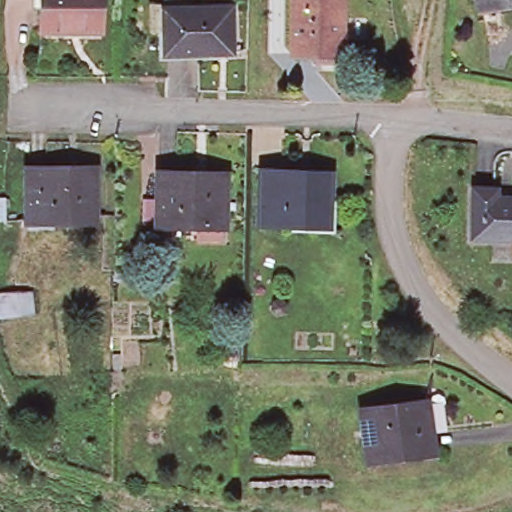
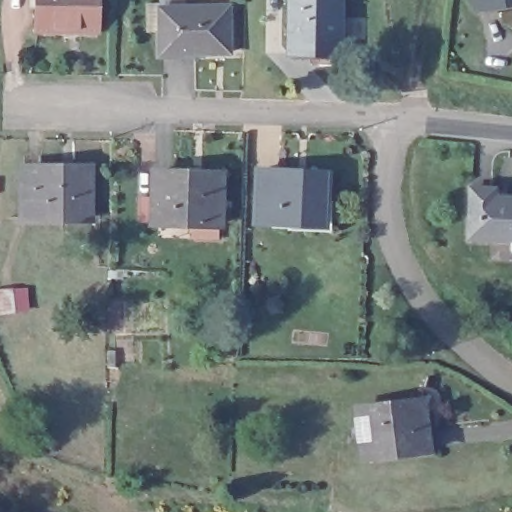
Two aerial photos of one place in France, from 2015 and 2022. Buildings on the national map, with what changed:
unchanged [(31,31),(30,0),(94,0),(94,30),(31,31)]
unchanged [(288,51),(291,0),(339,0),(336,53),(288,51)]
unchanged [(474,0),(512,0),(475,5),(474,0)]
unchanged [(224,8),(223,55),(154,53),(155,8),(224,8)]
unchanged [(61,162),(60,170),(88,171),(87,215),(21,213),(25,162),(61,162)]
unchanged [(325,171),(322,222),(256,219),(259,167),(325,171)]
unchanged [(219,175),(217,225),(152,222),(154,173),(219,175)]
unchanged [(463,234),(469,185),(492,188),(492,195),(512,198),(512,239),(463,234)]
unchanged [(420,403),(422,454),(362,457),(361,406),(420,403)]

